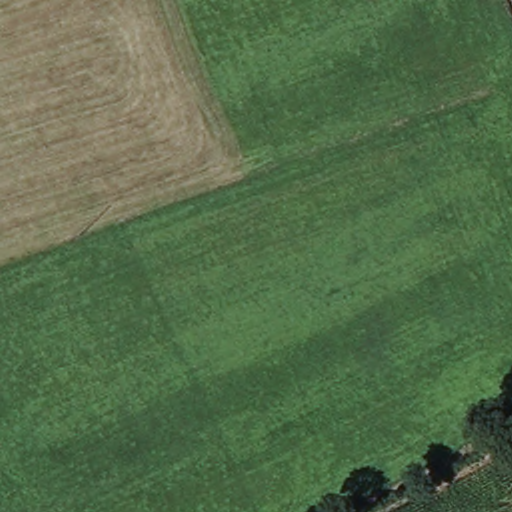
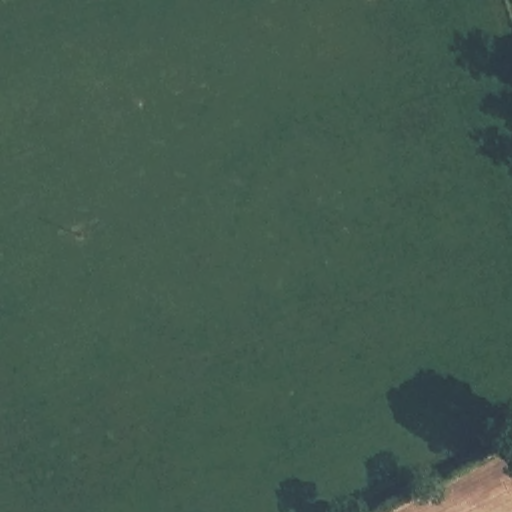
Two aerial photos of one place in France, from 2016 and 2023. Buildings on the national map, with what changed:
[]

